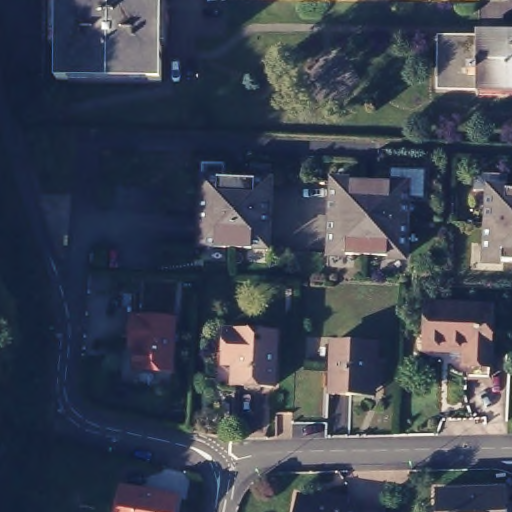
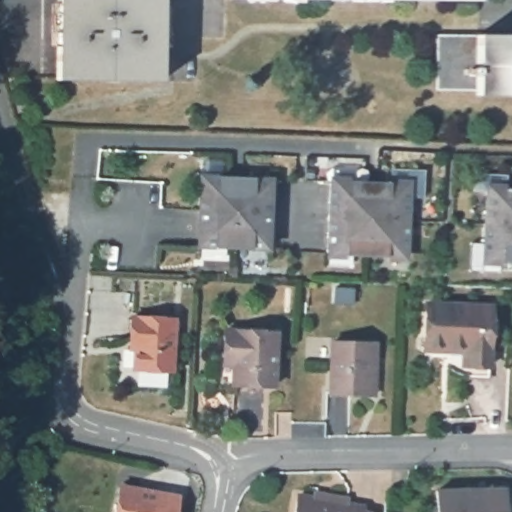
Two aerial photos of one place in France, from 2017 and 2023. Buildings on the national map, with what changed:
unchanged [(62,80),(63,0),(168,0),(168,3),(167,34),(167,82),(62,80)]
unchanged [(477,91),(437,91),(437,35),(512,36),(512,96),(477,96),(477,91)]
unchanged [(270,181),(268,250),(199,247),(202,178),(270,181)]
unchanged [(350,183),(350,182),(391,185),(410,186),(407,257),(388,256),(347,254),(347,255),(327,254),(330,182),(350,183)]
unchanged [(512,194),(512,266),(502,266),(484,265),(487,194),(505,194),(512,194)]
unchanged [(492,297),(489,367),(466,366),(467,339),(425,337),(427,295),(492,297)]
unchanged [(175,315),(172,367),(135,365),(136,345),(131,344),(132,332),(132,313),(175,315)]
unchanged [(230,326),(282,328),(279,382),(238,380),(240,351),(230,350),(230,326)]
unchanged [(370,390),(330,388),(332,338),(376,340),(375,358),(375,391),(370,390)]
unchanged [(184,492),(180,512),(121,512),(125,482),(184,492)]
unchanged [(505,485),(505,512),(438,512),(437,486),(505,485)]
unchanged [(347,500),(364,502),(362,507),(362,512),(295,512),(299,491),(347,500)]

